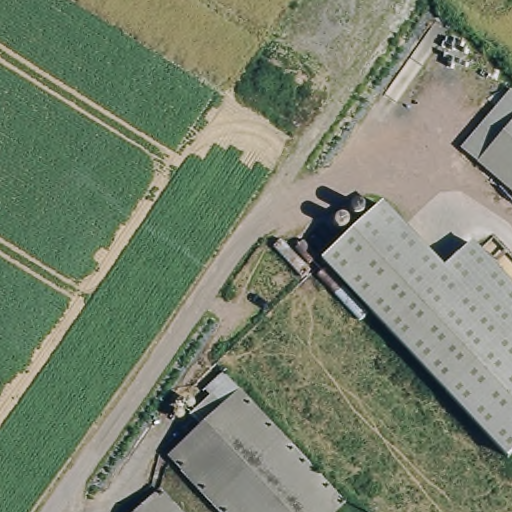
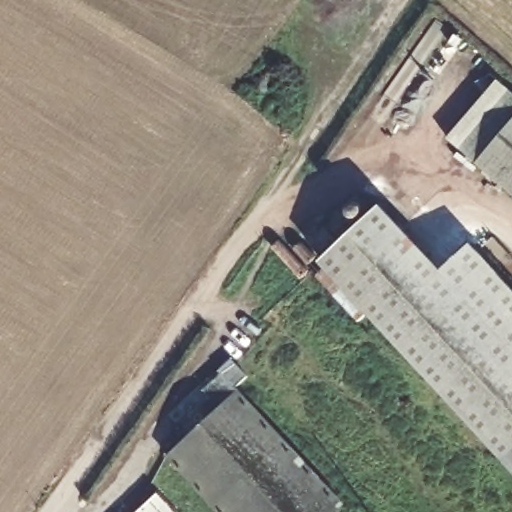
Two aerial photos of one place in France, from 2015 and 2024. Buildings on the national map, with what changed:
unchanged [(510,95),(512,98),(512,200),(458,152),(510,95)]
unchanged [(437,274),(498,341),(512,356),(512,474),(440,395),(318,262),(377,208),(437,274)]
unchanged [(437,274),(466,247),(512,297),(512,356),(498,341),(437,274)]
unchanged [(303,473),(339,512),(210,512),(165,463),(197,432),(187,420),(208,400),(220,412),(234,398),(303,473)]
unchanged [(174,512),(137,512),(156,493),(174,512)]

